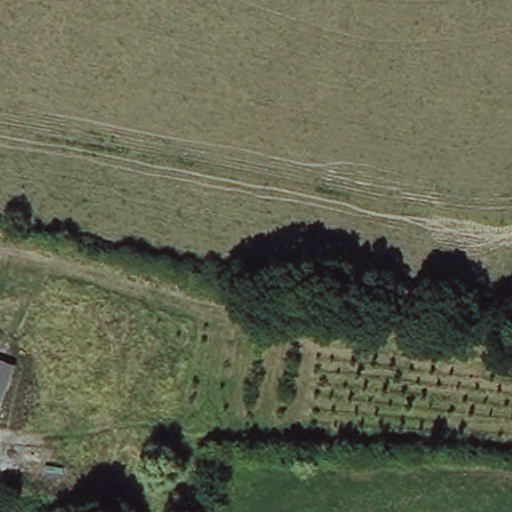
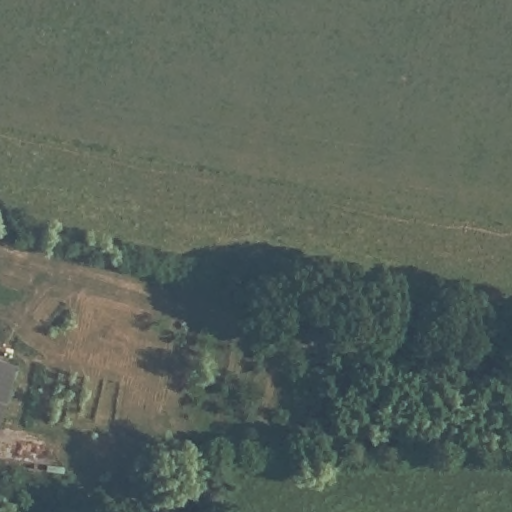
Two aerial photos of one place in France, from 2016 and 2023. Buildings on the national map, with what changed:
unchanged [(12,372),(0,408),(0,368),(12,372)]

